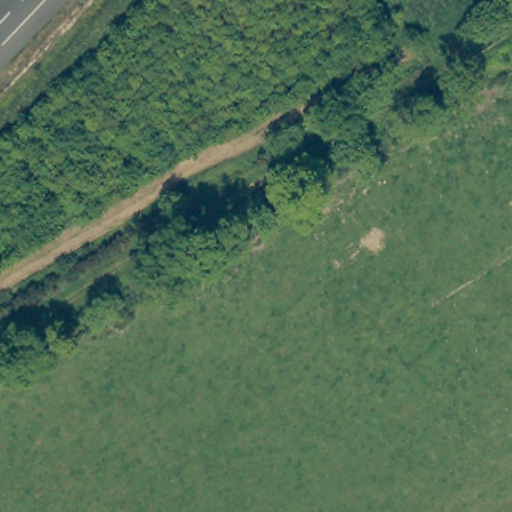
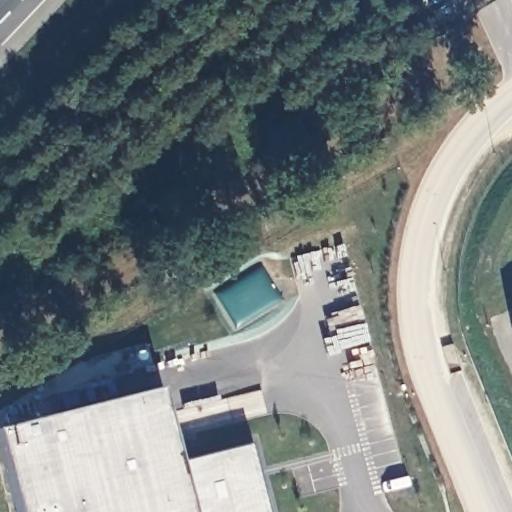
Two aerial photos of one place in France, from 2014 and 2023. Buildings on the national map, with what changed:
new [(252,444),(269,512),(15,512),(0,452),(0,430),(159,389),(181,464),(252,444)]

